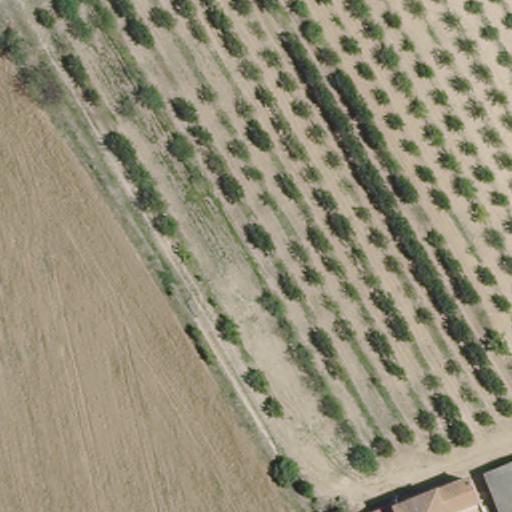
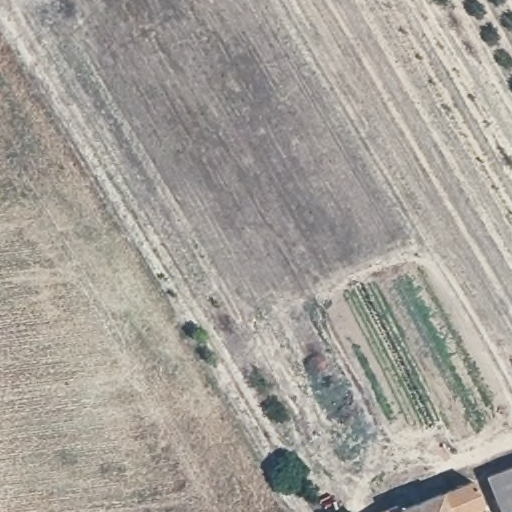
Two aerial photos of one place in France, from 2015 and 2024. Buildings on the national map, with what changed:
unchanged [(499,512),(487,479),(512,470),(512,512),(499,512)]
unchanged [(483,512),(446,512),(440,497),(475,485),(483,512)]
unchanged [(446,512),(397,512),(440,497),(446,512)]
unchanged [(397,512),(378,512),(395,506),(397,512)]

